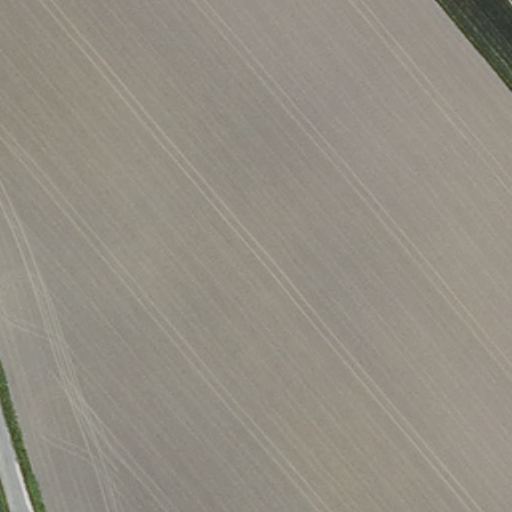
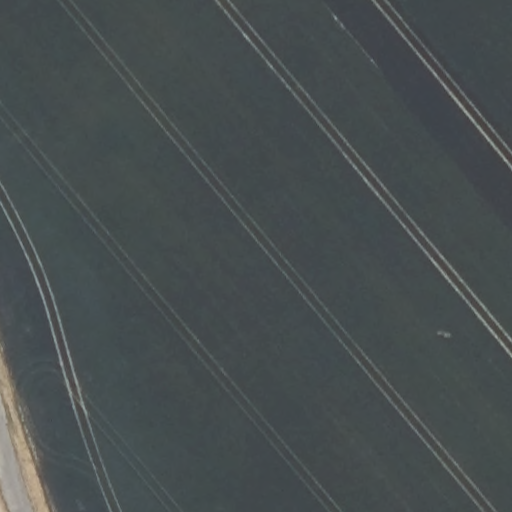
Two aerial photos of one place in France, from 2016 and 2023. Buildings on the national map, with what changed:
[]

